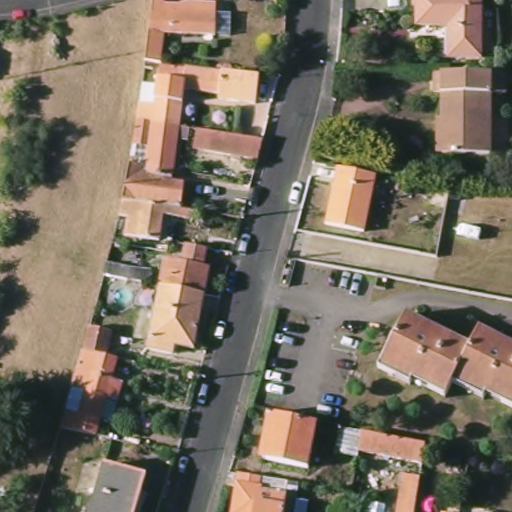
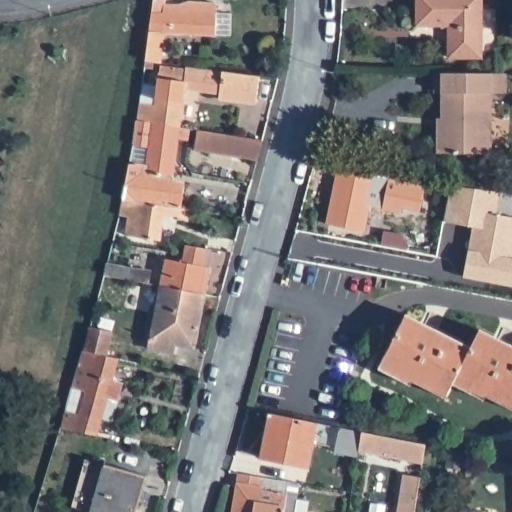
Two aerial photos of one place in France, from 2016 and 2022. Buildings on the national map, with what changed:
unchanged [(164,6),(179,7),(189,4),(216,5),(216,15),(230,16),(229,37),(215,36),(164,34),(160,66),(145,65),(152,0),(164,0),(164,6)]
unchanged [(482,60),(451,60),(450,27),(421,27),(421,0),(483,0),(482,60)]
unchanged [(142,85),(158,87),(160,69),(186,72),(187,69),(262,77),(259,107),(219,103),(220,95),(184,91),(179,129),(138,122),(140,105),(142,85)]
unchanged [(509,94),(492,92),(489,154),(444,152),(445,92),(438,92),(439,74),(501,75),(509,75),(509,94)]
unchanged [(177,137),(170,185),(181,186),(178,210),(124,201),(131,159),(138,160),(138,165),(145,166),(149,146),(134,144),(138,122),(179,129),(189,130),(188,139),(177,137)]
unchanged [(195,152),(199,131),(263,142),(258,161),(195,152)]
unchanged [(367,236),(330,229),(340,170),(377,177),(367,236)]
new [(464,278),(473,227),(444,221),(450,186),(498,191),(495,214),(512,217),(512,286),(464,278)]
unchanged [(185,219),(163,217),(159,241),(130,237),(131,219),(120,217),(124,201),(178,210),(187,212),(185,219)]
unchanged [(203,274),(207,275),(203,296),(159,287),(164,260),(182,262),(185,247),(208,251),(203,274)]
unchanged [(113,259),(133,263),(130,277),(110,272),(113,259)]
unchanged [(193,352),(178,350),(177,359),(147,354),(159,287),(203,296),(193,352)]
unchanged [(492,397),(489,402),(457,384),(450,397),(418,380),(414,386),(382,368),(409,315),(474,347),(483,331),(512,346),(512,407),(492,397)]
unchanged [(74,413),(83,415),(96,356),(86,353),(93,328),(113,333),(108,358),(118,361),(111,387),(123,389),(119,410),(107,408),(101,438),(61,431),(68,406),(74,407),(74,413)]
unchanged [(312,472),(264,462),(272,416),(319,426),(312,472)]
unchanged [(352,453),(338,452),(328,450),(333,426),(342,427),(356,430),(417,442),(421,443),(417,462),(353,450),(352,453)]
unchanged [(145,480),(137,512),(92,512),(105,468),(145,480)]
unchanged [(291,486),(287,512),(234,512),(240,477),(291,486)]
unchanged [(415,502),(413,512),(400,512),(402,502),(415,502)]

